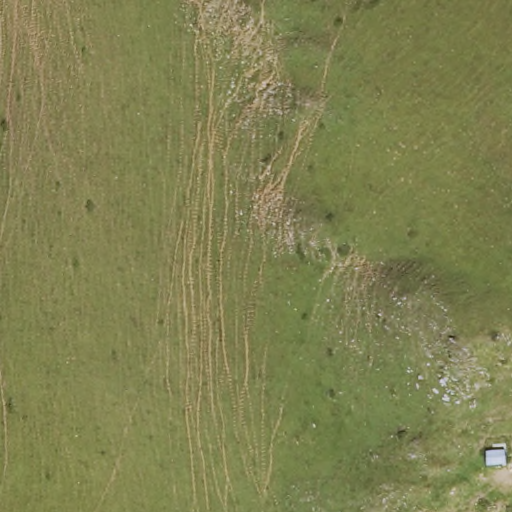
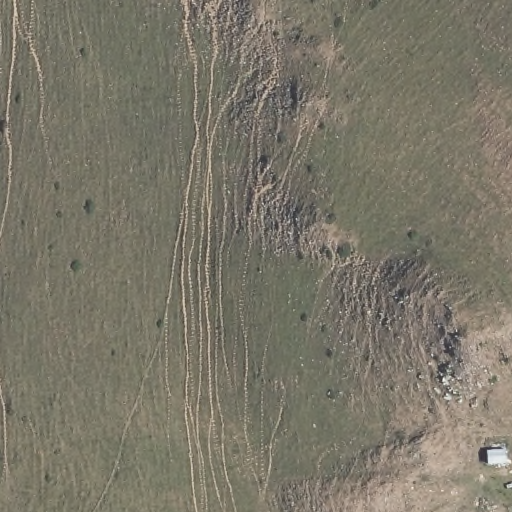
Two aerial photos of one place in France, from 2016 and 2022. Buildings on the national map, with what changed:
unchanged [(511,466),(499,467),(489,468),(489,456),(510,455),(511,466)]

